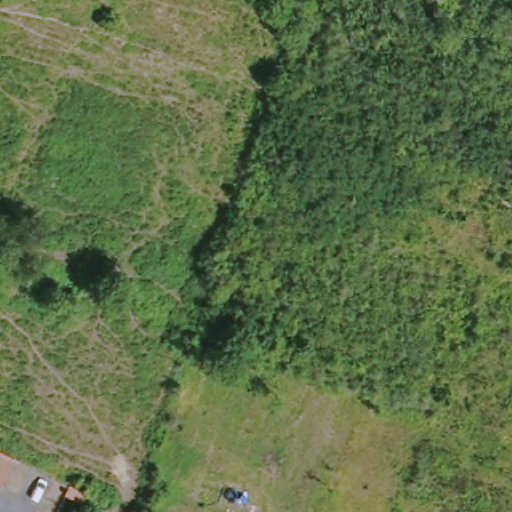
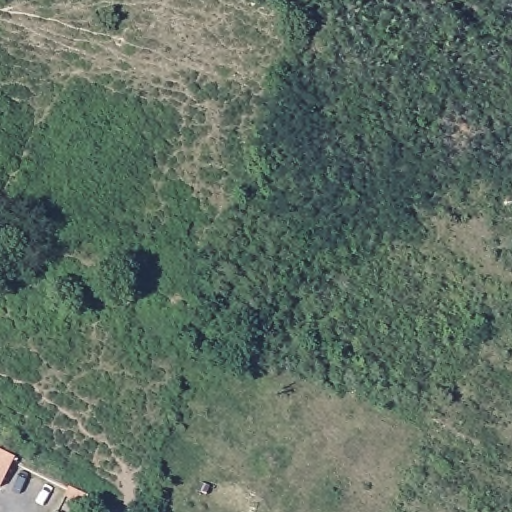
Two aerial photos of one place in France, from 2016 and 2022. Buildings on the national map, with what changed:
unchanged [(24,460),(10,490),(0,485),(0,449),(24,460)]
unchanged [(70,489),(97,503),(94,511),(66,497),(70,489)]

